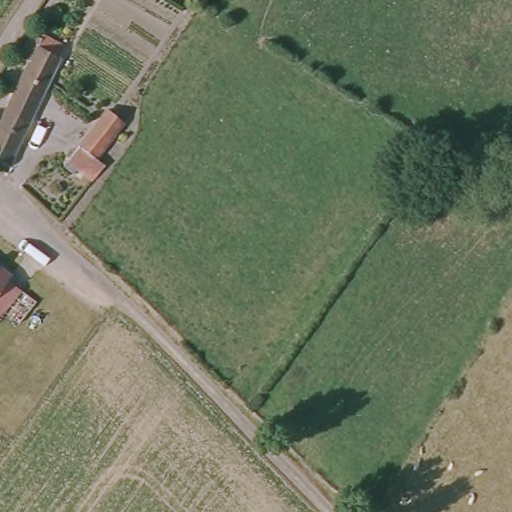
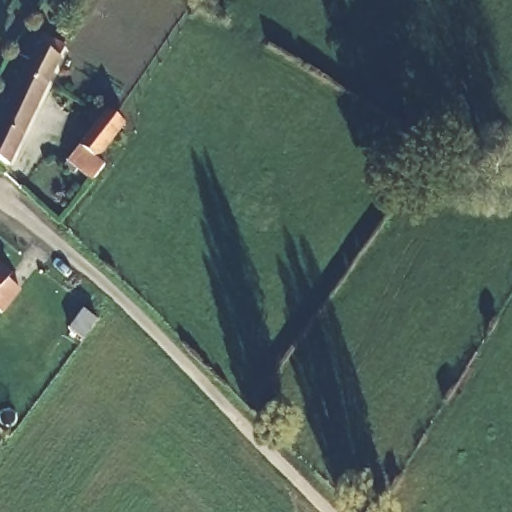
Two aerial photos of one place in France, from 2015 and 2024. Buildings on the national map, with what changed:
unchanged [(183,0),(184,0),(183,1),(183,0)]
unchanged [(6,172),(0,169),(0,127),(30,66),(21,62),(31,41),(40,46),(44,37),(68,52),(6,172)]
unchanged [(106,126),(118,137),(88,172),(76,161),(106,126)]
unchanged [(8,271),(2,278),(18,291),(1,312),(0,311),(0,264),(8,271)]

